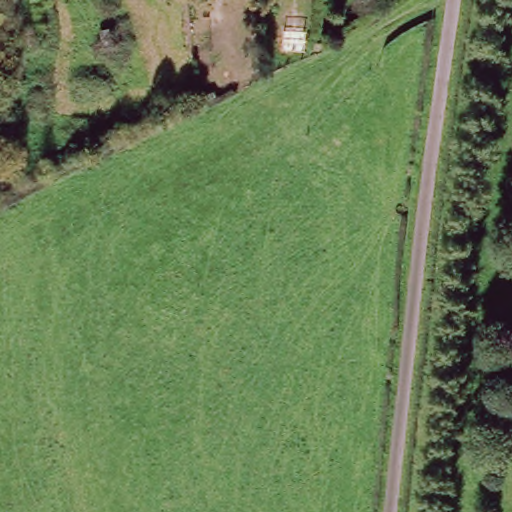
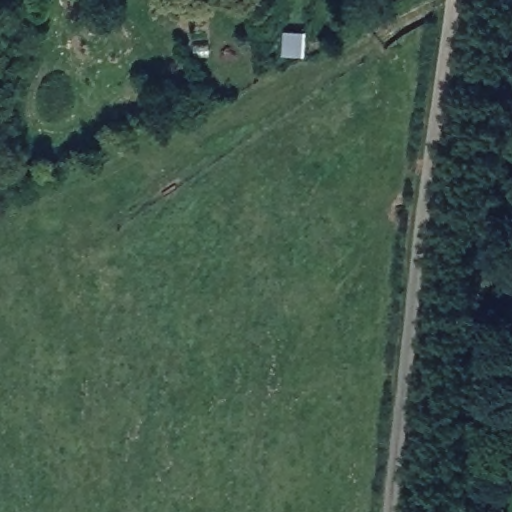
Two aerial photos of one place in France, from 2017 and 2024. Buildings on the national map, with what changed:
unchanged [(15,0),(18,64),(0,64),(0,0),(15,0)]

